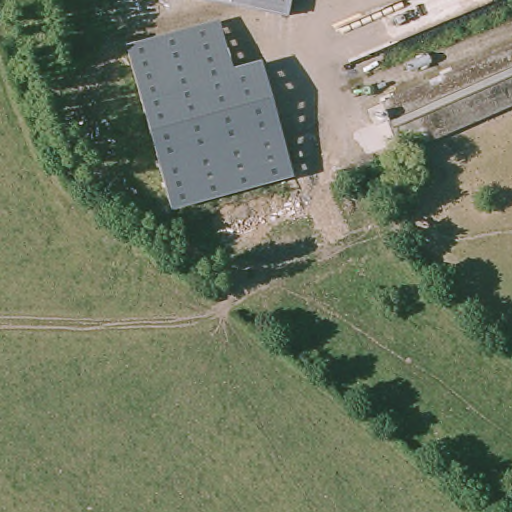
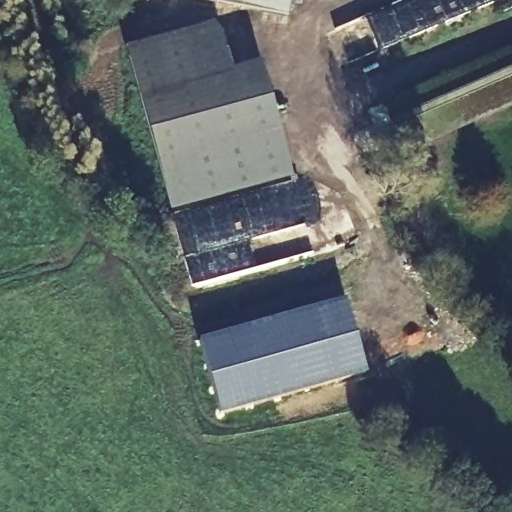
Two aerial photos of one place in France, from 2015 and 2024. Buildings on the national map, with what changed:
unchanged [(293,12),(227,0),(294,0),(293,12)]
unchanged [(220,20),(233,67),(259,60),(292,177),(173,211),(126,45),(220,20)]
unchanged [(406,160),(387,117),(512,57),(512,110),(406,160)]
new [(198,341),(346,299),(366,375),(219,415),(198,341)]

